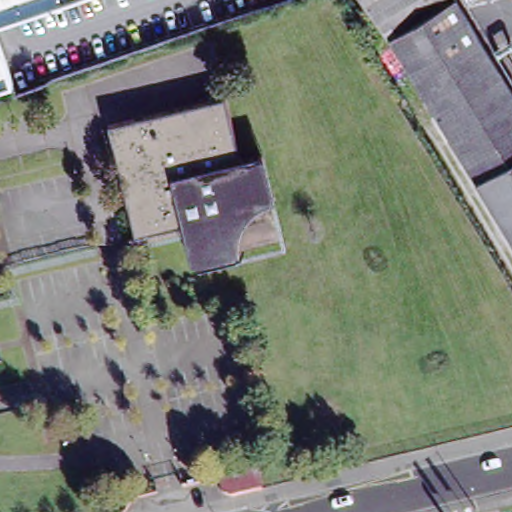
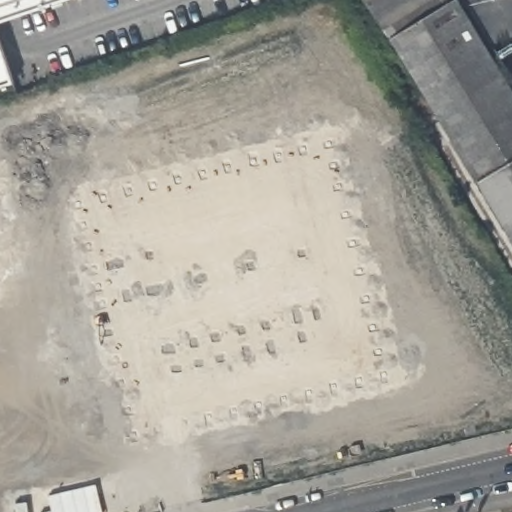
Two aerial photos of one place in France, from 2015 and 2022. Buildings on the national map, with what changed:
unchanged [(0,0),(71,0),(0,24),(0,0)]
unchanged [(452,0),(388,37),(367,0),(452,0)]
unchanged [(388,37),(452,0),(453,0),(512,98),(512,161),(475,184),(388,37)]
unchanged [(0,89),(0,57),(10,86),(0,89)]
demolished [(229,99),(245,162),(265,158),(275,202),(270,204),(261,208),(254,214),(248,221),(244,229),(240,241),(240,250),(241,257),(198,267),(187,226),(139,238),(111,127),(229,99)]
unchanged [(475,184),(512,161),(512,247),(475,184)]

